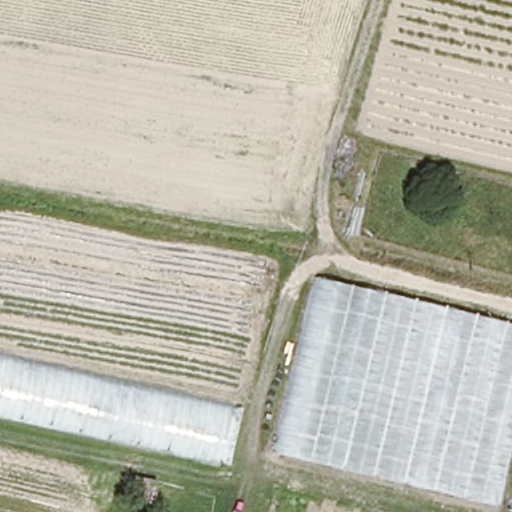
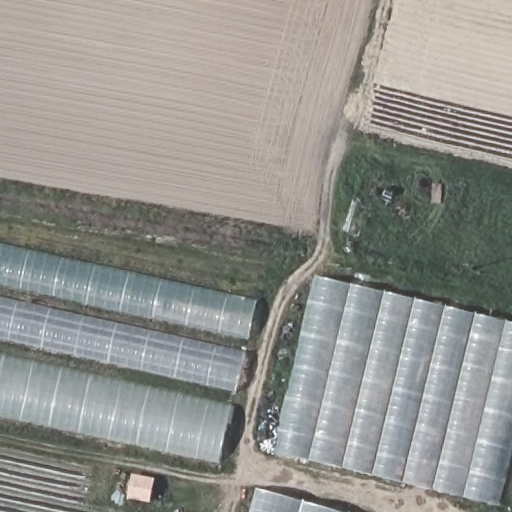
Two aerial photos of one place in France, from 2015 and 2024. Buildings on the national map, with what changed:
new [(0,340),(0,243),(258,299),(235,394),(0,340)]
unchanged [(439,512),(263,472),(313,272),(512,317),(512,457),(498,512),(439,512)]
unchanged [(235,448),(221,445),(220,466),(0,417),(0,351),(244,404),(235,448)]
unchanged [(130,498),(134,478),(156,481),(153,502),(130,498)]
new [(339,512),(250,512),(257,488),(339,512)]

